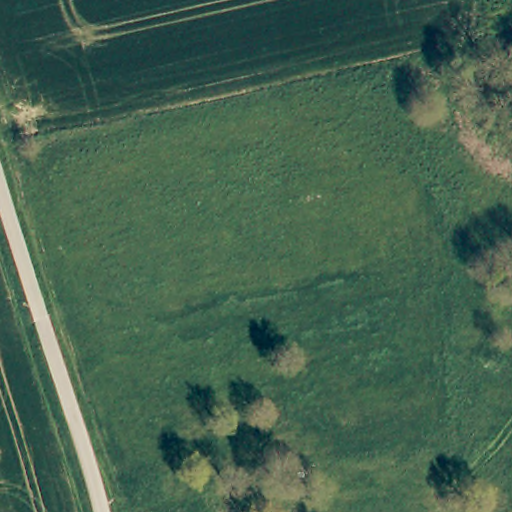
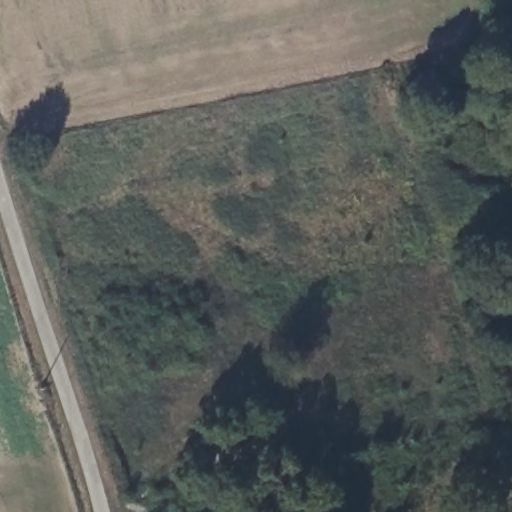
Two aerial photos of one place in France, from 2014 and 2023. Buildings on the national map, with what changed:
[]

